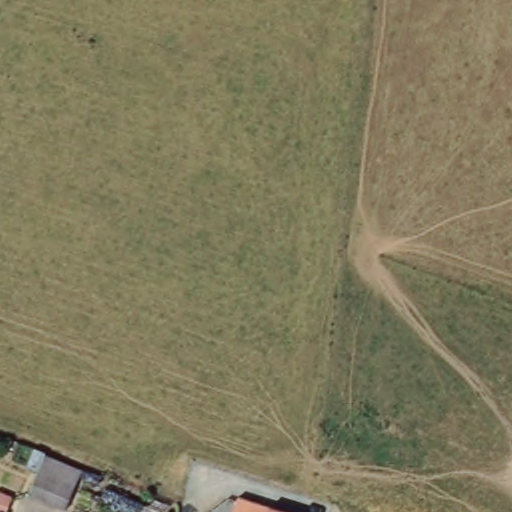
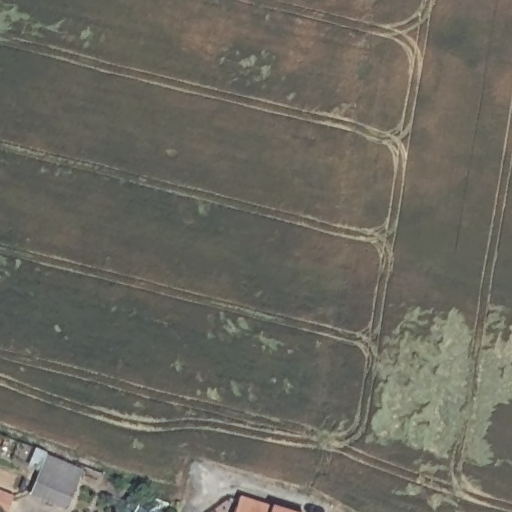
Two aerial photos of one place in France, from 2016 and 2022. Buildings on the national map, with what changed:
unchanged [(87,469),(67,512),(31,496),(49,454),(87,469)]
unchanged [(303,512),(233,512),(241,491),(303,512)]

